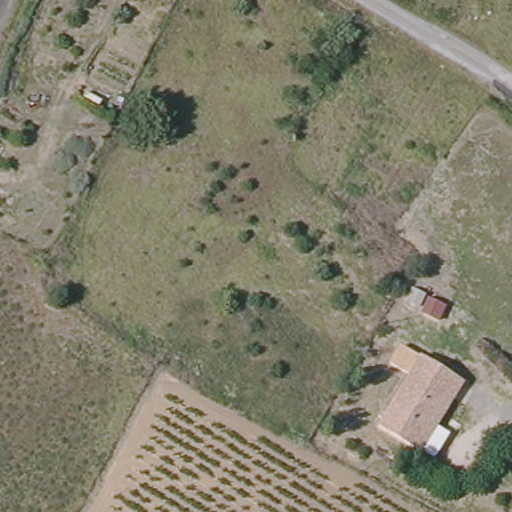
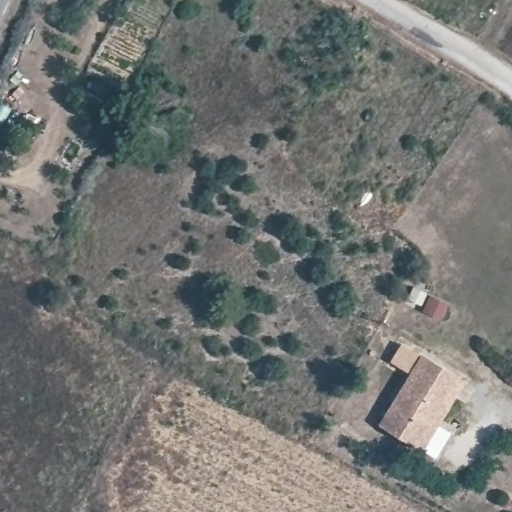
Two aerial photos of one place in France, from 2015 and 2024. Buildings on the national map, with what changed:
unchanged [(433,457),(413,445),(379,425),(411,374),(391,363),(403,344),(460,379),(434,421),(449,431),(433,457)]

